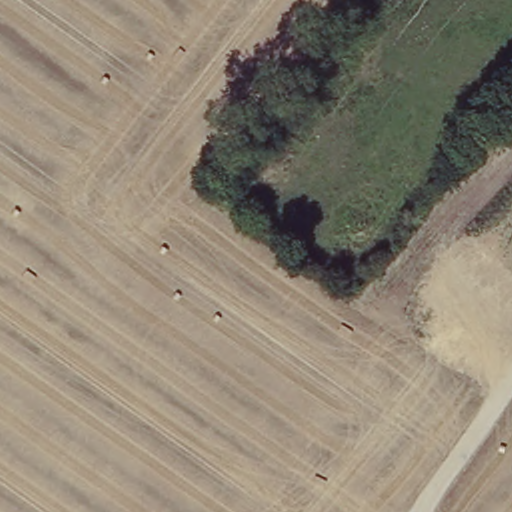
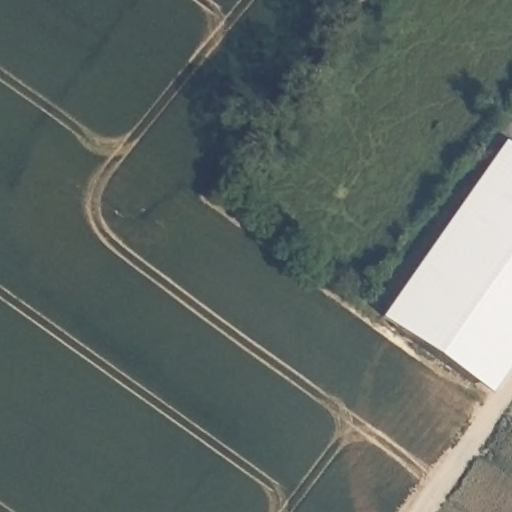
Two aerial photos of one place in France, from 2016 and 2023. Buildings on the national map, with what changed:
new [(503,149),(512,156),(512,365),(487,400),(383,320),(503,149)]

